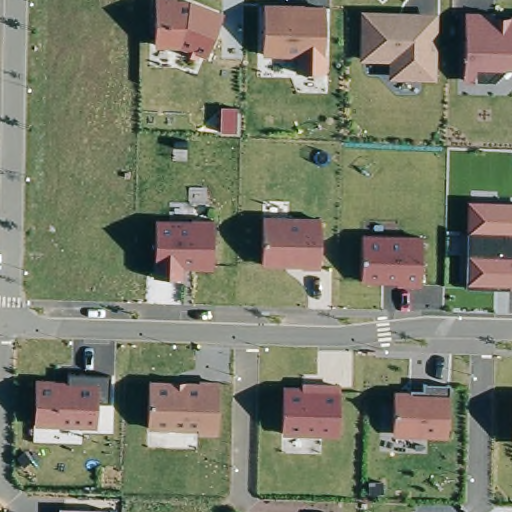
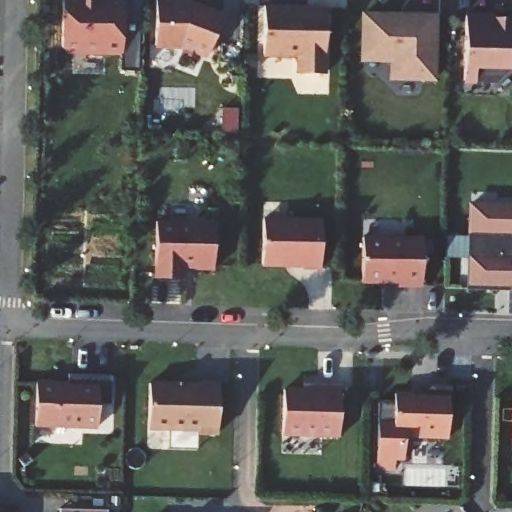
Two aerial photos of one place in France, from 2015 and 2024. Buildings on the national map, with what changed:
new [(139,73),(119,72),(119,54),(65,52),(60,47),(62,0),(140,0),(139,73)]
unchanged [(225,14),(205,59),(196,55),(195,59),(186,56),(187,52),(177,49),(156,49),(157,0),(191,0),(225,14)]
unchanged [(327,5),(325,76),(296,74),(296,58),(263,56),(265,3),(327,5)]
unchanged [(438,12),(436,81),(391,78),(390,63),(361,62),(363,10),(438,12)]
unchanged [(506,69),(493,82),(477,80),(476,85),(462,84),(466,13),(512,14),(512,69),(506,69)]
unchanged [(465,283),(468,201),(512,204),(512,286),(465,283)]
unchanged [(323,219),(321,268),(302,268),(302,266),(263,264),(265,216),(323,219)]
unchanged [(191,220),(191,219),(215,220),(213,267),(184,267),(184,279),(154,278),(156,218),(191,220)]
unchanged [(424,236),(422,287),(400,285),(400,283),(361,280),(363,233),(424,236)]
unchanged [(69,381),(69,373),(111,375),(109,404),(99,404),(98,427),(34,426),(36,379),(69,381)]
unchanged [(200,380),(200,378),(220,379),(218,436),(197,436),(197,430),(149,427),(151,380),(200,380)]
unchanged [(303,386),(303,380),(341,383),(340,435),(284,434),(284,386),(303,386)]
unchanged [(412,390),(412,387),(424,387),(424,382),(449,382),(447,440),(392,437),(394,391),(412,390)]
unchanged [(64,510),(107,511),(106,512),(58,512),(59,509),(64,510)]

